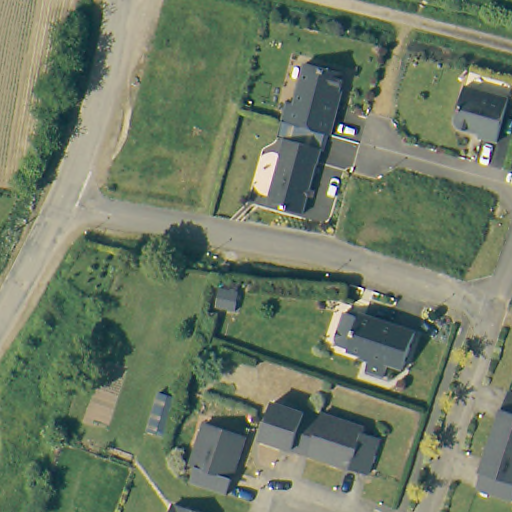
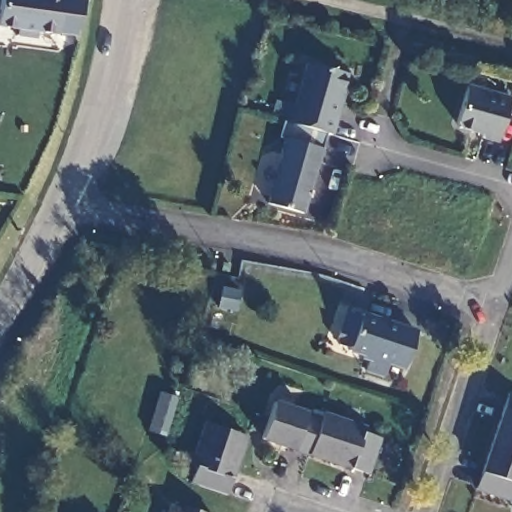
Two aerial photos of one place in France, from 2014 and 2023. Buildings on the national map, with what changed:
new [(40,33),(40,40),(17,36),(18,29),(0,26),(0,0),(62,0),(57,35),(40,33)]
unchanged [(299,105),(309,64),(350,74),(342,101),(345,102),(336,135),(286,121),(290,103),(299,105)]
unchanged [(496,148),(480,143),(478,137),(460,131),(455,125),(468,90),(510,104),(496,148)]
unchanged [(288,137),(326,148),(322,164),(320,163),(306,214),(270,204),(288,137)]
unchanged [(411,328),(400,365),(385,361),(381,372),(363,367),(366,354),(347,348),(358,310),(411,328)]
unchanged [(164,432),(146,427),(158,388),(175,393),(164,432)]
unchanged [(510,388),(512,388),(512,494),(478,483),(510,388)]
unchanged [(320,417),(321,411),(361,425),(360,430),(377,437),(365,472),(261,436),(267,417),(272,402),(320,417)]
unchanged [(226,490),(190,477),(195,464),(190,463),(205,420),(245,433),(226,490)]
unchanged [(208,512),(170,512),(174,500),(208,512)]

